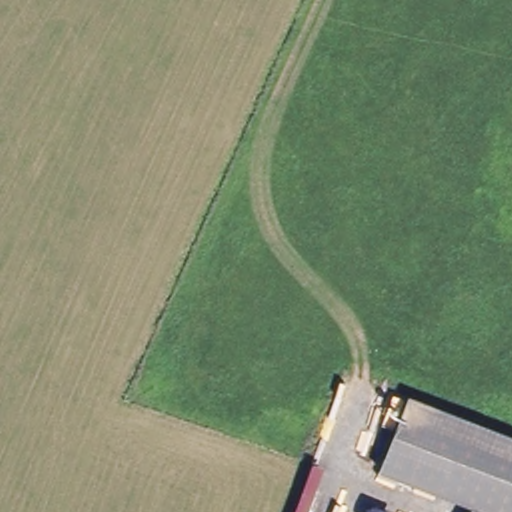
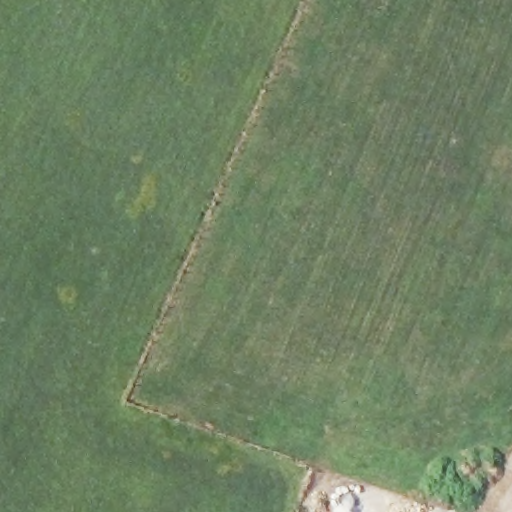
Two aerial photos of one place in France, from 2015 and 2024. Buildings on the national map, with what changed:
demolished [(403,397),(512,438),(512,512),(476,512),(470,510),(377,475),(403,397)]
demolished [(476,512),(469,512),(470,510),(476,512)]

